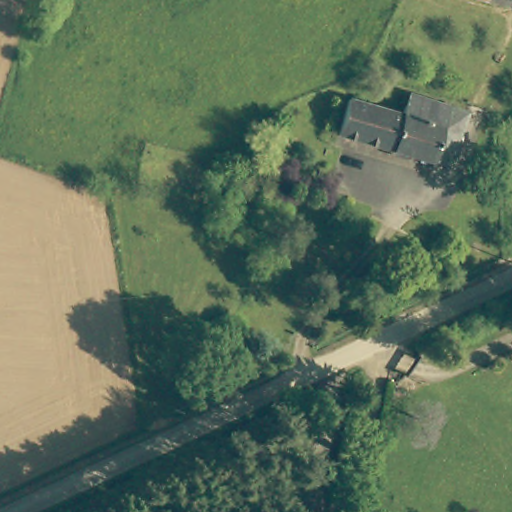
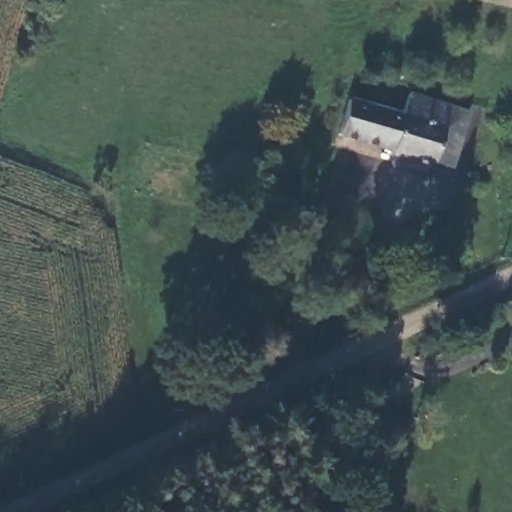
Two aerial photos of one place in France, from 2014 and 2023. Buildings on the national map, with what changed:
unchanged [(360,92),(375,97),(413,109),(418,93),(480,113),(465,162),(461,161),(349,126),(360,92)]

